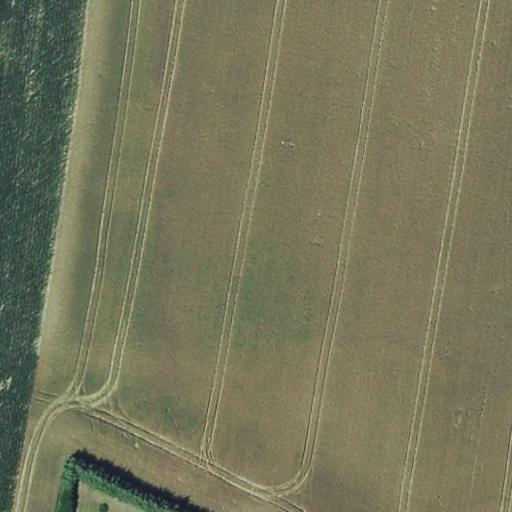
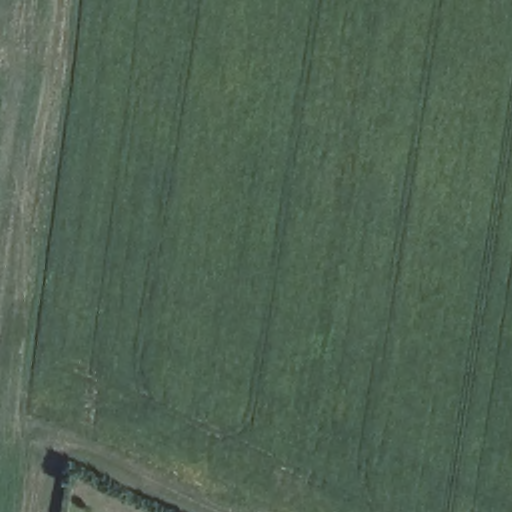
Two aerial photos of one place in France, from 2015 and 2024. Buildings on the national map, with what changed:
[]

